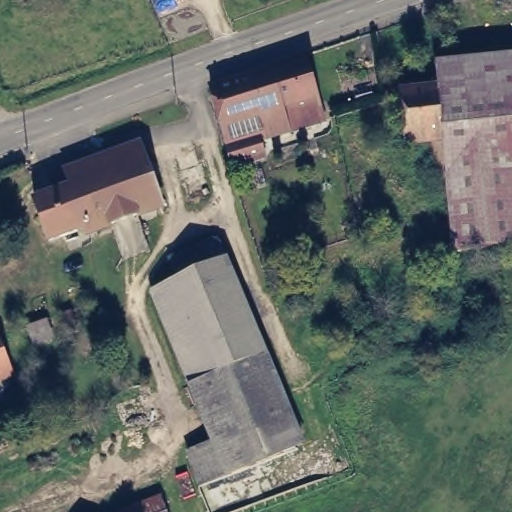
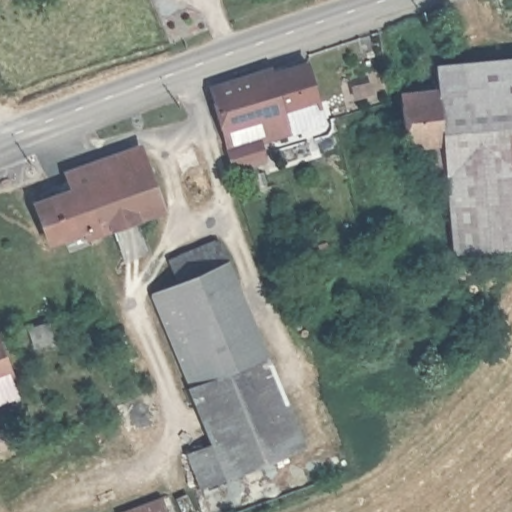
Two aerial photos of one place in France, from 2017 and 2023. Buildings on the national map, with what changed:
unchanged [(299,54),(318,114),(257,133),(261,149),(229,158),(208,86),(299,54)]
unchanged [(439,63),(512,56),(512,250),(454,256),(446,181),(439,182),(434,147),(407,150),(400,92),(439,89),(439,63)]
unchanged [(164,207),(138,217),(149,251),(123,260),(111,227),(87,234),(84,229),(49,241),(34,201),(148,162),(164,207)]
unchanged [(179,287),(171,267),(218,247),(300,447),(223,478),(153,298),(179,287)]
unchanged [(0,381),(0,342),(13,376),(0,381)]
unchanged [(168,512),(114,512),(161,493),(168,512)]

